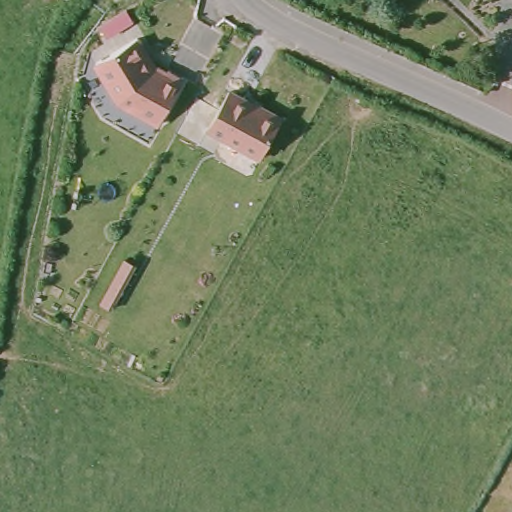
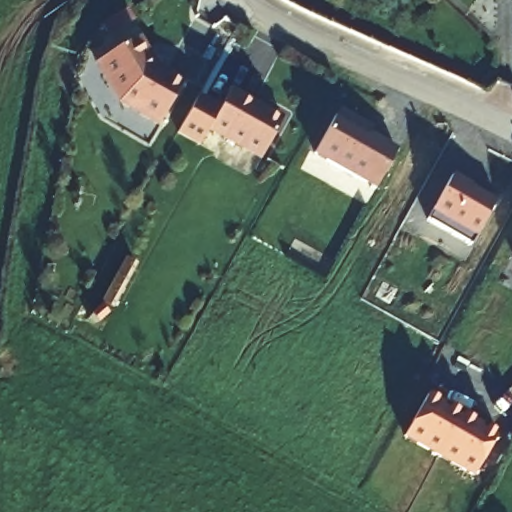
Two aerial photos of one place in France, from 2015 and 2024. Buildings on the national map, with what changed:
unchanged [(135,46),(152,73),(165,80),(166,77),(182,86),(157,131),(117,109),(94,70),(135,46)]
unchanged [(280,120),(257,159),(205,130),(227,91),(280,120)]
new [(198,147),(177,135),(198,96),(219,105),(205,130),(198,147)]
new [(314,153),(335,114),(397,148),(375,187),(314,153)]
new [(453,174),(495,198),(472,243),(427,219),(453,174)]
unchanged [(122,259),(133,265),(109,309),(98,303),(122,259)]
new [(430,391),(500,431),(474,476),(404,437),(430,391)]

